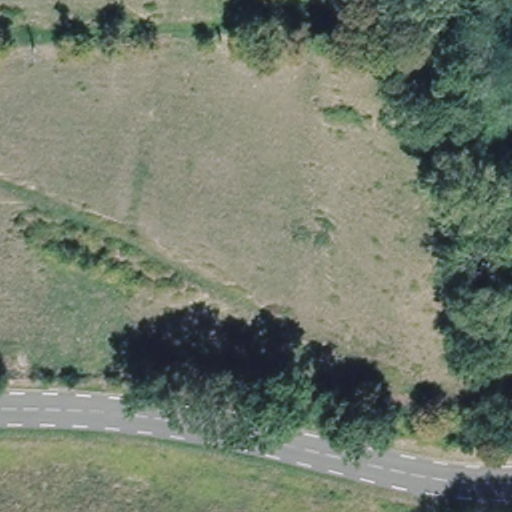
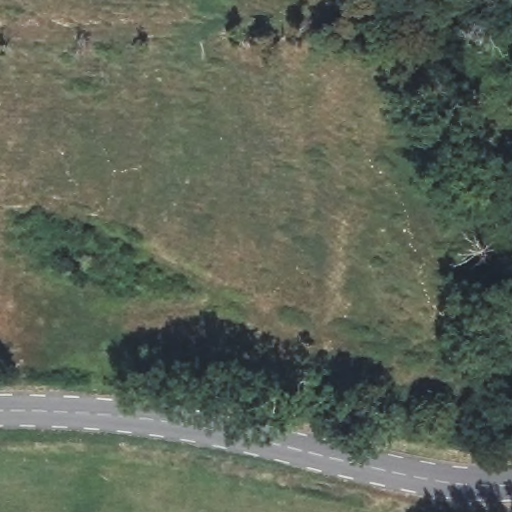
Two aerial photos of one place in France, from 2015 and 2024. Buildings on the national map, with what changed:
[]

